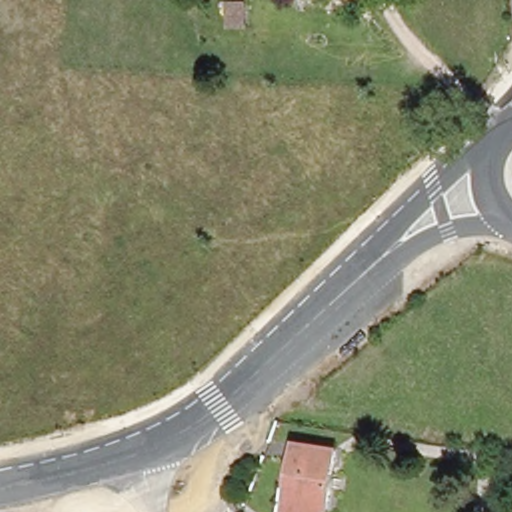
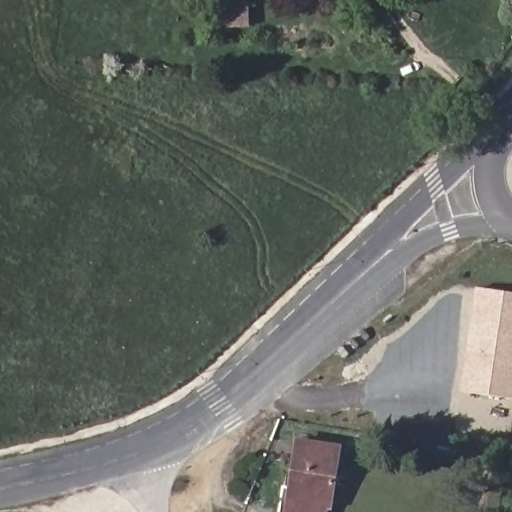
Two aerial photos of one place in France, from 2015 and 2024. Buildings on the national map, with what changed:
unchanged [(227,23),(228,0),(252,0),(251,25),(227,23)]
new [(512,293),(512,400),(461,392),(476,288),(512,293)]
unchanged [(289,512),(292,443),(335,445),(331,512),(289,512)]

